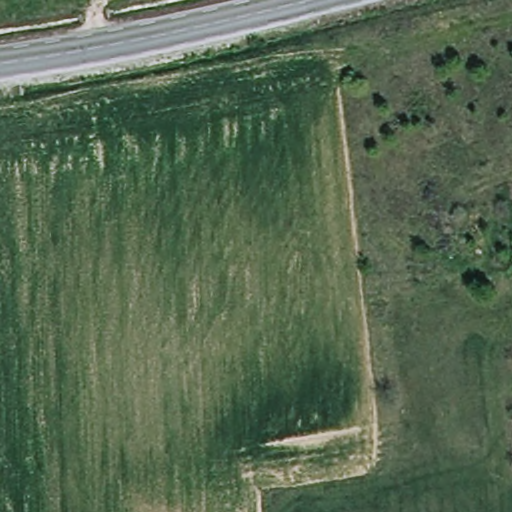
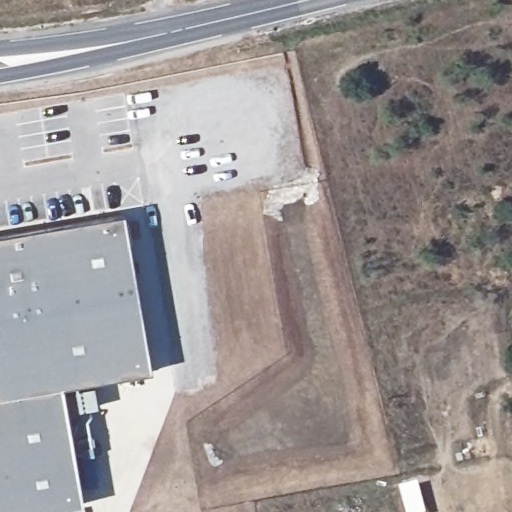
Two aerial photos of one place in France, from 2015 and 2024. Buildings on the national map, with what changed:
new [(146,372),(58,386),(79,505),(42,512),(0,512),(0,235),(119,214),(146,372)]

